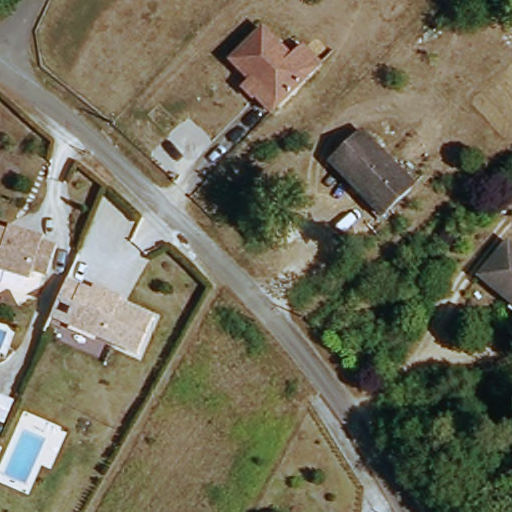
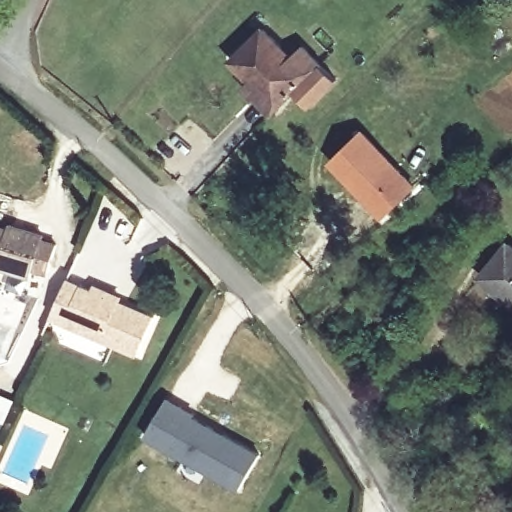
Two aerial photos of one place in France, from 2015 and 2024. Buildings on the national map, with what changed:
unchanged [(318,69),(270,115),(253,96),(257,92),(231,64),(265,33),(292,61),(302,50),(318,69)]
unchanged [(336,160),(370,132),(416,186),(383,215),(336,160)]
unchanged [(47,241),(60,245),(52,273),(37,268),(35,275),(0,264),(0,224),(13,229),(15,224),(28,229),(49,235),(47,241)]
unchanged [(509,243),(512,245),(512,304),(480,278),(509,243)]
unchanged [(148,355),(62,317),(77,282),(101,292),(103,288),(117,294),(130,300),(127,304),(163,320),(148,355)]
unchanged [(15,400),(5,425),(0,423),(0,397),(15,400)]
new [(193,416),(258,455),(238,490),(145,437),(169,399),(194,413),(193,416)]

